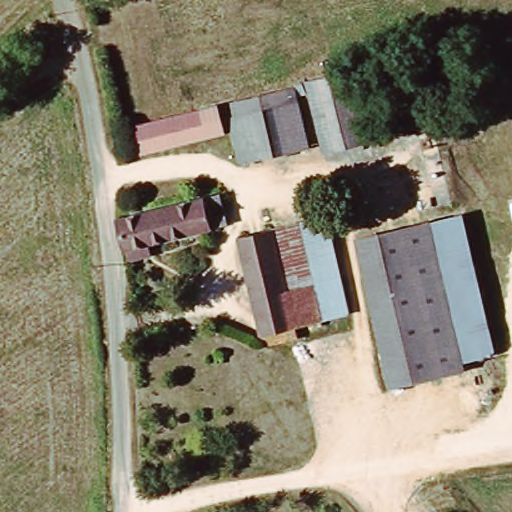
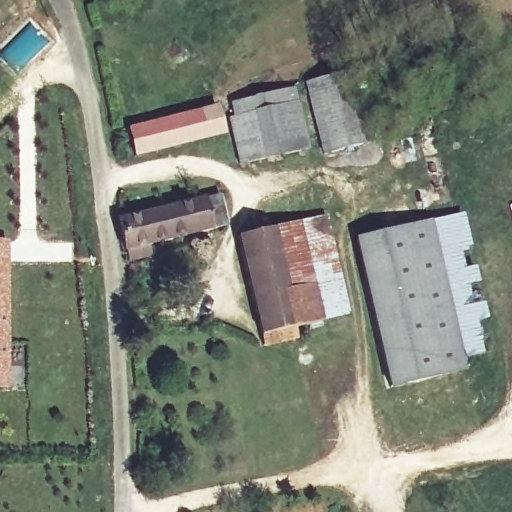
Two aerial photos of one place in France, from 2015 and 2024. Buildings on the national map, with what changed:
unchanged [(331,154),(314,84),(354,75),(370,144),(331,154)]
unchanged [(246,116),(255,114),(251,100),(295,89),(310,148),(259,161),(246,116)]
unchanged [(229,133),(142,154),(135,127),(222,106),(229,133)]
unchanged [(230,227),(127,250),(122,220),(222,196),(230,227)]
unchanged [(470,362),(472,370),(396,388),(360,240),(465,215),(497,355),(470,362)]
unchanged [(329,223),(355,322),(303,335),(305,342),(290,346),(288,338),(269,343),(242,245),(329,223)]
new [(0,245),(6,245),(6,265),(7,369),(7,389),(0,389),(0,245)]

